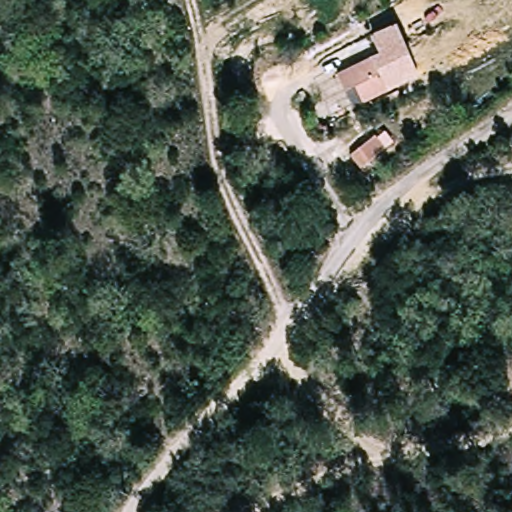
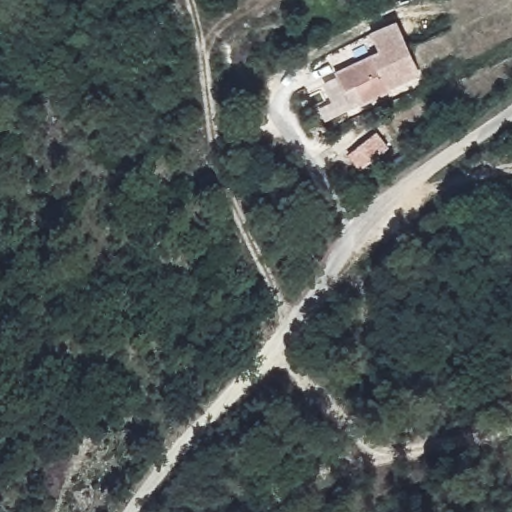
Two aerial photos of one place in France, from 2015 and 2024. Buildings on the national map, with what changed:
unchanged [(380,58),(371,39),(395,29),(403,48),(380,58)]
unchanged [(369,61),(379,56),(380,58),(403,48),(416,79),(385,96),(369,61)]
unchanged [(342,93),(334,76),(369,61),(385,96),(366,104),(351,111),(342,93)]
unchanged [(382,154),(358,167),(350,149),(373,137),(382,154)]

